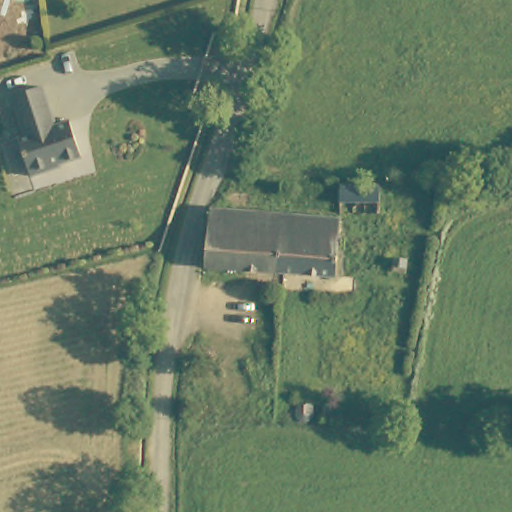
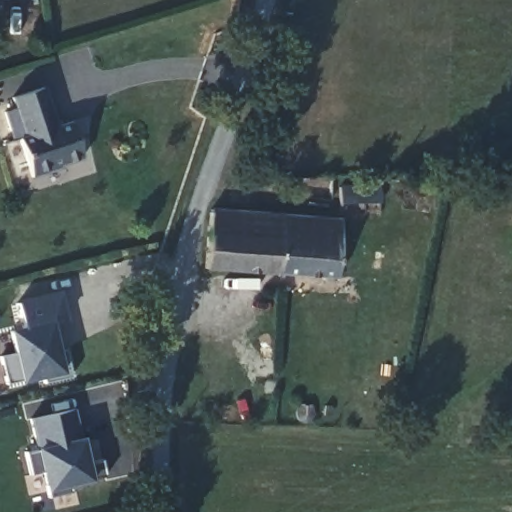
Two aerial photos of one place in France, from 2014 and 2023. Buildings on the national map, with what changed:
unchanged [(79,163),(50,170),(51,174),(29,180),(18,140),(25,139),(13,99),(45,90),(56,129),(69,126),(79,163)]
unchanged [(385,201),(345,199),(346,183),(386,185),(385,201)]
unchanged [(210,208),(279,215),(275,273),(225,269),(202,268),(210,208)]
unchanged [(335,220),(329,277),(275,273),(279,215),(335,220)]
new [(59,291),(66,321),(51,323),(58,349),(64,348),(71,378),(44,385),(42,377),(20,381),(5,383),(0,365),(0,359),(13,356),(7,332),(22,328),(17,300),(59,291)]
unchanged [(314,408),(312,412),(310,415),(306,417),(302,417),(298,415),(295,412),(294,408),(294,404),(314,408)]
new [(83,438),(88,464),(101,461),(104,476),(92,479),(93,482),(70,487),(70,492),(49,497),(46,492),(40,471),(31,473),(26,452),(37,447),(29,419),(73,409),(83,438)]

